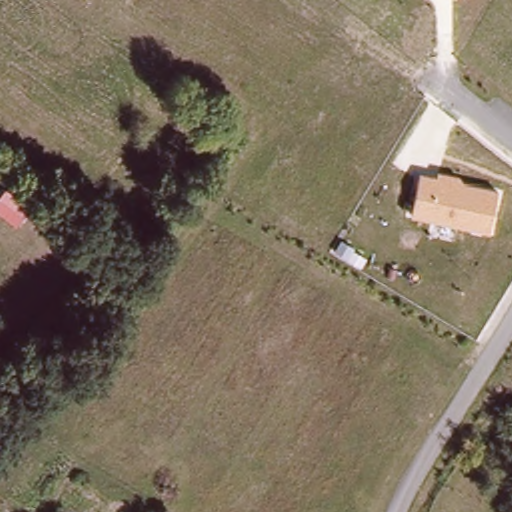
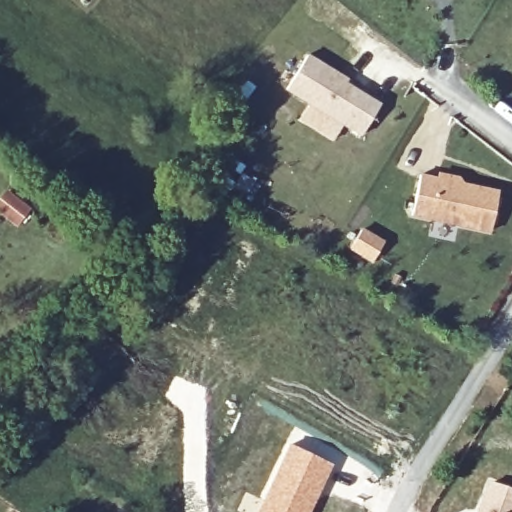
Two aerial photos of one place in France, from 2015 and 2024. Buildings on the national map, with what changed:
new [(342,74),(350,79),(348,83),(382,104),(363,135),(289,88),(310,55),(342,74)]
unchanged [(421,172),(437,176),(439,171),(460,175),(464,181),(498,189),(491,230),(411,215),(421,172)]
new [(364,230),(385,243),(375,260),(354,246),(364,230)]
new [(289,442),(333,463),(310,512),(255,512),(289,442)]
new [(512,490),(512,512),(484,512),(494,483),(512,490)]

